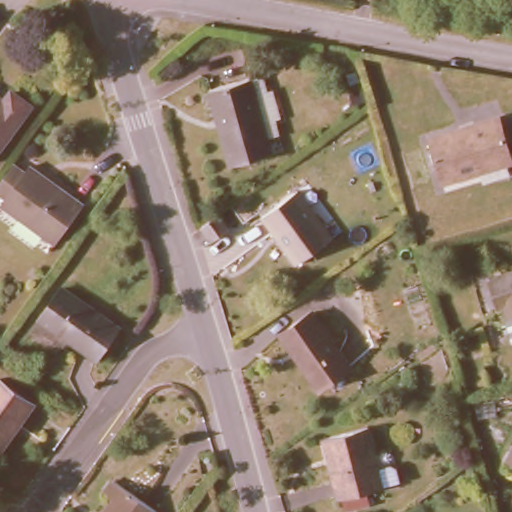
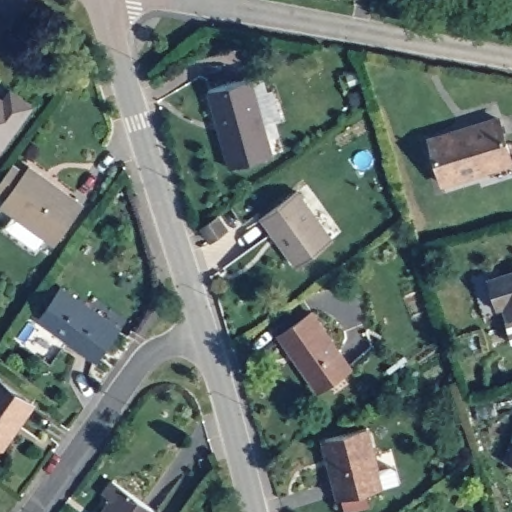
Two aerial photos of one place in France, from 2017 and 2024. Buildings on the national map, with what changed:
unchanged [(268,138),(272,154),(230,165),(210,91),(252,79),(255,94),(272,89),(280,118),(275,120),(279,135),(268,138)]
unchanged [(12,90),(30,104),(0,147),(0,97),(5,100),(12,90)]
unchanged [(430,138),(460,129),(461,133),(475,129),(473,125),(500,117),(512,160),(442,181),(430,138)]
unchanged [(0,194),(0,185),(15,164),(25,172),(30,166),(83,203),(55,242),(3,206),(7,199),(0,194)]
unchanged [(297,191),(332,237),(296,263),(262,217),(297,191)]
unchanged [(228,230),(212,242),(201,226),(217,215),(228,230)]
unchanged [(507,318),(503,306),(497,308),(488,277),(512,270),(512,317),(507,318)]
unchanged [(62,286),(117,326),(95,357),(40,318),(62,286)]
unchanged [(312,312),(350,367),(318,389),(280,334),(312,312)]
unchanged [(0,449),(0,379),(33,402),(0,449)]
unchanged [(367,427),(382,486),(340,497),(325,437),(367,427)]
unchanged [(508,460),(512,453),(512,462),(508,460)]
unchanged [(123,510),(113,502),(123,489),(154,512),(122,512),(123,510)]

